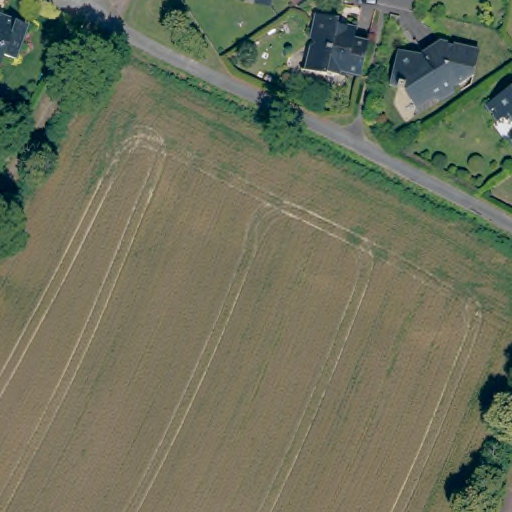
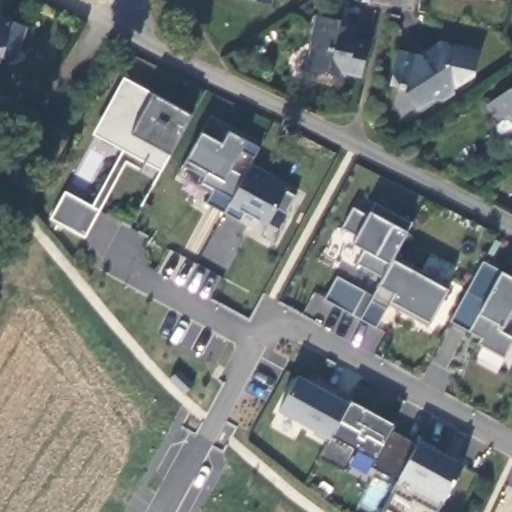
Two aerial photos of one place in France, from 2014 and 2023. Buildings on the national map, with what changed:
unchanged [(336,71),(332,74),(318,71),(317,75),(300,71),(313,18),(331,22),(330,27),(340,29),(340,33),(348,34),(347,41),(362,45),(355,76),(336,71)]
unchanged [(21,28),(8,61),(0,58),(0,20),(20,27),(21,28)]
unchanged [(477,47),(471,73),(465,70),(464,78),(457,83),(451,81),(452,88),(437,98),(428,95),(416,105),(406,88),(396,85),(396,83),(388,81),(397,47),(435,56),(440,40),(477,47)]
new [(192,115),(170,153),(171,153),(163,170),(94,134),(124,79),(154,94),(192,115)]
unchanged [(507,115),(497,113),(492,117),(481,102),(512,80),(512,123),(507,115)]
new [(222,142),(229,131),(246,140),(259,149),(253,159),(240,152),(231,167),(245,175),(225,213),(205,205),(210,194),(177,176),(187,159),(201,132),(222,142)]
unchanged [(508,141),(512,138),(512,147),(508,141)]
new [(251,164),(275,177),(271,184),(296,197),(286,215),(276,210),(267,226),(245,214),(240,223),(224,215),(251,164)]
new [(56,222),(67,199),(94,217),(85,233),(56,222)]
new [(355,265),(363,251),(351,245),(355,237),(341,229),(352,208),(367,216),(375,203),(412,224),(385,275),(382,279),(375,275),(355,265)]
new [(447,288),(430,322),(391,303),(375,330),(359,320),(380,286),(392,259),(447,288)]
new [(501,271),(512,277),(512,320),(509,318),(503,327),(501,331),(512,337),(512,343),(505,357),(479,345),(483,339),(452,320),(484,261),(501,271)]
new [(323,301),(336,277),(365,293),(372,297),(360,321),(352,316),(323,301)]
new [(329,439),(315,431),(317,427),(281,408),(300,373),(320,383),(321,380),(340,389),(337,393),(350,400),(329,439)]
new [(398,421),(395,427),(420,440),(399,478),(373,464),(377,457),(357,446),(345,467),(321,454),(352,396),(398,421)]
new [(438,443),(436,446),(465,462),(439,510),(415,496),(413,499),(393,488),(422,435),(438,443)]

